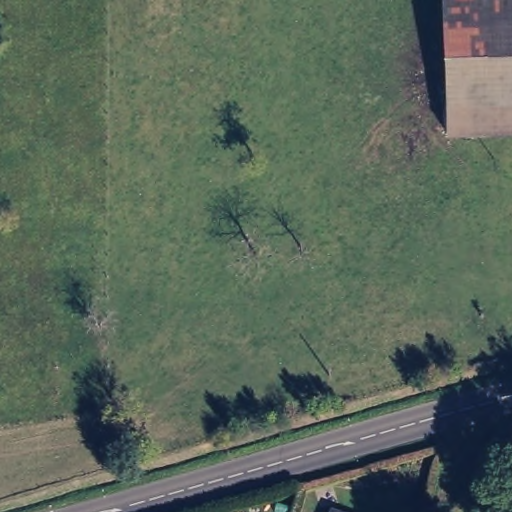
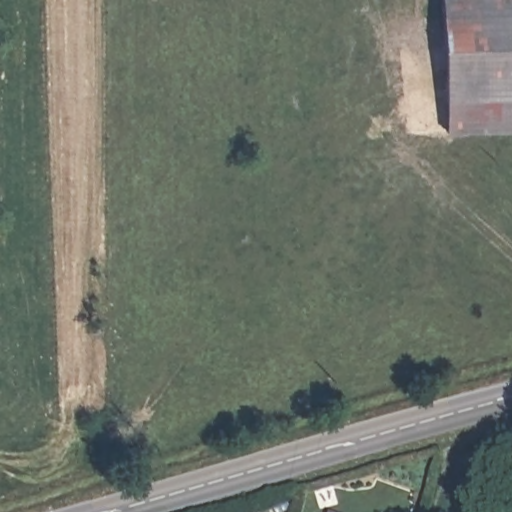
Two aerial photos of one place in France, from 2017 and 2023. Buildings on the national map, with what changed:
unchanged [(442,134),(440,0),(512,0),(512,131),(442,134)]

